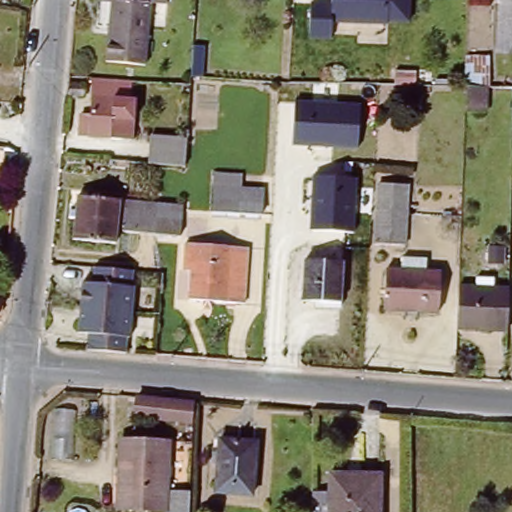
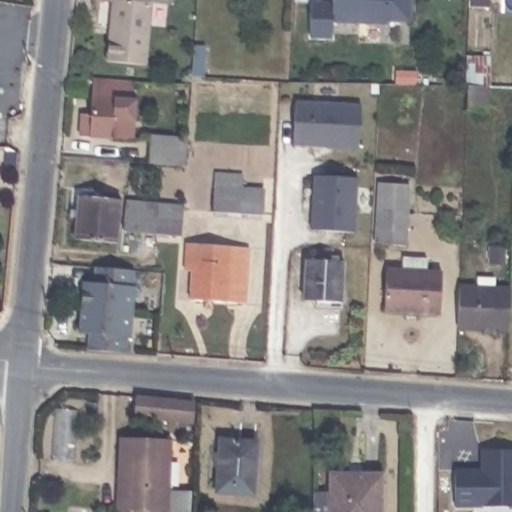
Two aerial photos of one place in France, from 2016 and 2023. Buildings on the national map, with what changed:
unchanged [(102,62),(105,29),(107,30),(110,1),(114,1),(114,0),(167,0),(166,6),(149,4),(142,66),(102,62)]
unchanged [(310,39),(312,2),(332,3),(332,0),(409,0),(409,25),(332,24),(332,41),(310,39)]
unchanged [(204,46),(202,77),(192,76),(194,46),(204,46)]
unchanged [(417,70),(417,84),(397,84),(397,69),(417,70)]
unchanged [(89,79),(127,81),(127,88),(126,102),(130,102),(127,141),(123,141),(123,142),(84,137),(85,127),(80,127),(80,120),(85,120),(88,85),(89,79)]
unchanged [(465,84),(482,82),(481,111),(461,110),(462,84),(465,84)]
unchanged [(83,84),(82,97),(62,95),(63,83),(83,84)]
unchanged [(296,102),(360,106),(357,149),(292,145),(296,102)]
unchanged [(182,144),(180,167),(147,165),(148,142),(182,144)]
unchanged [(127,155),(126,163),(112,161),(114,154),(127,155)]
unchanged [(212,167),(240,169),(240,182),(262,185),(260,212),(206,208),(212,167)]
unchanged [(314,176),(357,179),(354,232),(310,231),(314,176)]
unchanged [(374,239),(375,204),(385,205),(385,180),(405,180),(405,205),(404,240),(374,239)]
unchanged [(110,238),(68,234),(70,213),(65,213),(65,205),(72,205),(72,191),(115,195),(110,238)]
unchanged [(176,232),(176,234),(150,231),(120,228),(116,228),(119,197),(123,197),(152,200),(178,202),(176,232)]
demolished [(293,223),(292,258),(275,258),(277,221),(293,223)]
unchanged [(182,245),(204,247),(203,259),(225,261),(227,243),(246,245),(241,300),(210,297),(209,303),(200,303),(200,297),(185,295),(188,266),(180,266),(182,245)]
unchanged [(312,302),(313,297),(300,297),(302,255),(340,257),(337,303),(312,302)]
unchanged [(437,268),(435,307),(382,304),(384,265),(437,268)]
unchanged [(77,282),(87,284),(89,268),(129,272),(127,288),(130,288),(127,314),(75,308),(77,282)]
unchanged [(510,286),(510,329),(454,328),(455,285),(510,286)]
unchanged [(75,308),(127,314),(124,339),(122,339),(120,353),(80,350),(82,334),(72,333),(75,308)]
unchanged [(189,403),(185,424),(130,415),(133,395),(189,403)]
unchanged [(163,505),(117,502),(119,437),(120,433),(167,435),(167,440),(163,505)]
unchanged [(210,488),(213,436),(250,438),(248,490),(210,488)]
new [(482,506),(482,508),(453,508),(452,469),(479,469),(479,451),(512,451),(512,506),(482,506)]
unchanged [(378,512),(309,512),(310,486),(323,487),(323,500),(330,500),(331,468),(364,469),(378,469),(378,512)]
unchanged [(189,512),(166,512),(167,484),(190,485),(189,512)]

